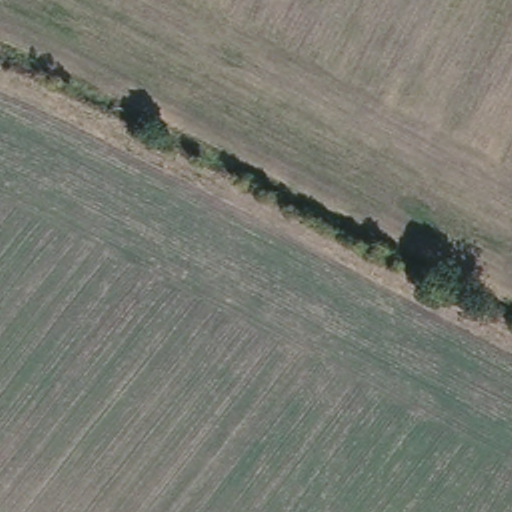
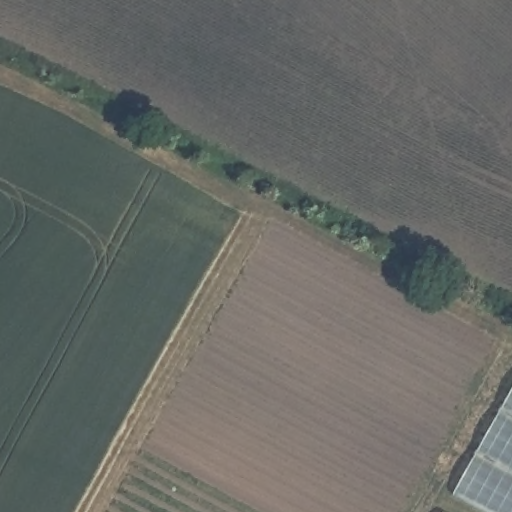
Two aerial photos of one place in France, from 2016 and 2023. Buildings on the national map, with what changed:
new [(512,390),(512,512),(480,512),(451,496),(512,390)]
new [(443,507),(452,512),(440,512),(443,507)]

